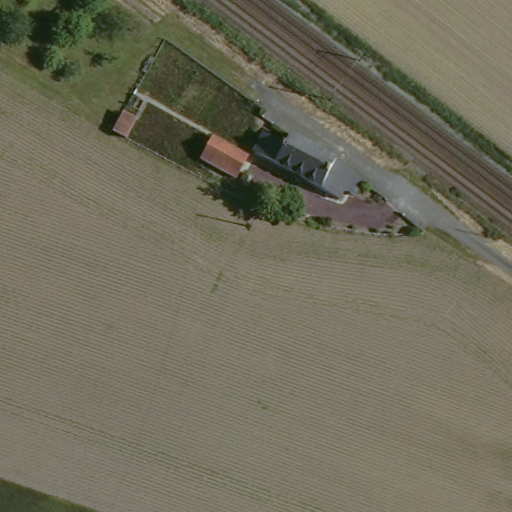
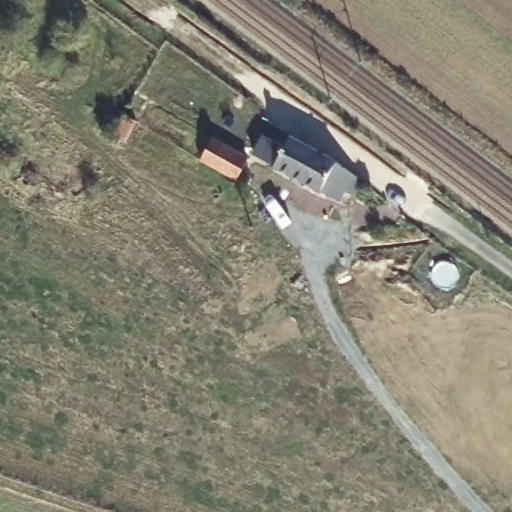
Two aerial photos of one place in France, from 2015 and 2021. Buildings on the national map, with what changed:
unchanged [(111,132),(122,112),(135,120),(125,139),(111,132)]
unchanged [(354,197),(343,191),(337,202),(251,155),(263,134),(283,145),(290,135),(338,165),(363,180),(354,197)]
unchanged [(200,161),(211,138),(247,157),(235,180),(200,161)]

